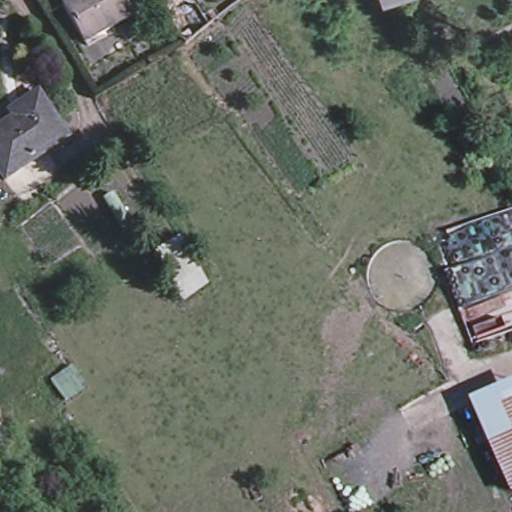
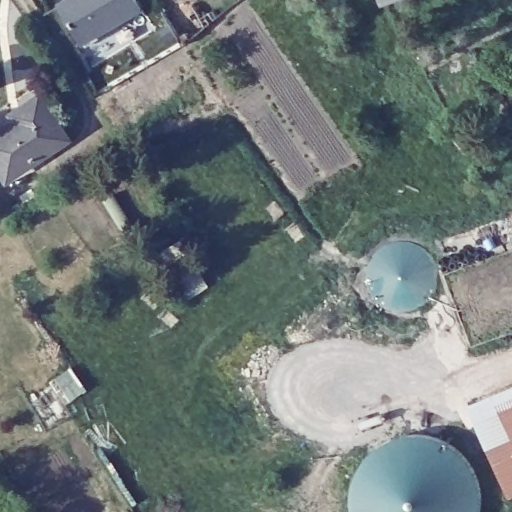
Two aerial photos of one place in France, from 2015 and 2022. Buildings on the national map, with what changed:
unchanged [(70,0),(147,0),(90,34),(70,0)]
unchanged [(209,27),(186,48),(165,13),(187,0),(214,0),(223,15),(209,27)]
unchanged [(386,0),(394,0),(387,3),(386,0)]
unchanged [(25,112),(21,105),(40,94),(68,139),(5,177),(0,169),(0,127),(25,112)]
unchanged [(192,262),(194,265),(197,263),(210,283),(184,302),(169,277),(192,262)]
unchanged [(510,493),(466,403),(512,381),(512,492),(510,493)]
unchanged [(2,417),(15,442),(0,450),(0,417),(2,417)]
new [(481,512),(355,512),(355,506),(356,494),(360,482),(366,471),(374,462),(383,454),(394,448),(406,444),(418,443),(430,444),(442,448),(453,454),(463,462),(471,471),(477,482),(480,494),(482,506),(481,512)]

